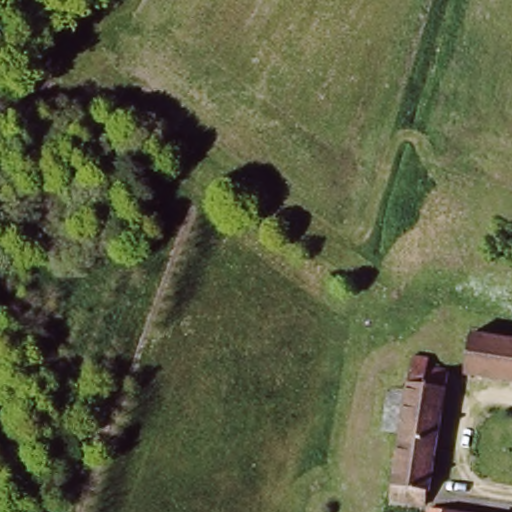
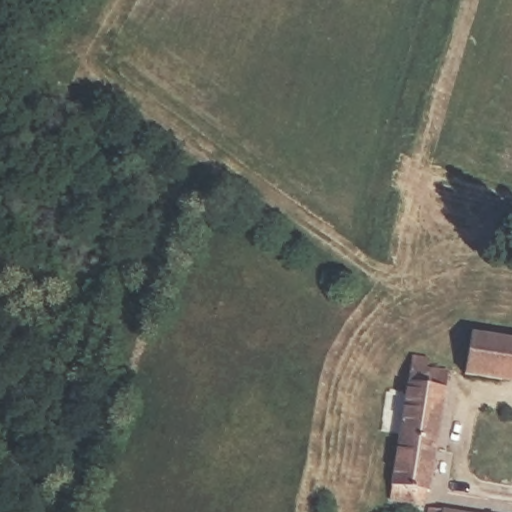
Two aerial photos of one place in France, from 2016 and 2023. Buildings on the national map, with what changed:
unchanged [(512,336),(512,380),(460,368),(467,327),(480,330),(512,336)]
unchanged [(435,505),(387,494),(412,350),(432,353),(431,362),(460,368),(435,505)]
unchanged [(435,505),(470,512),(434,512),(435,505)]

